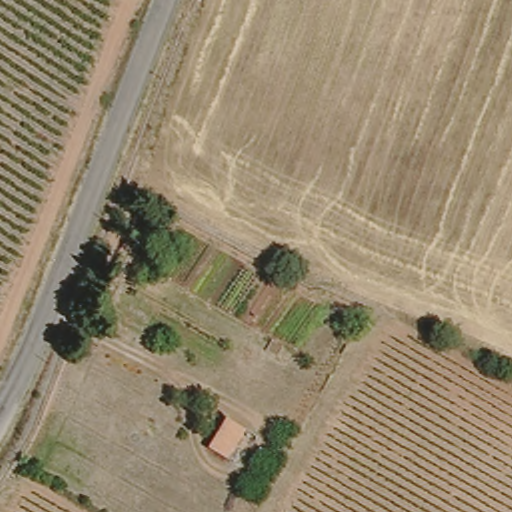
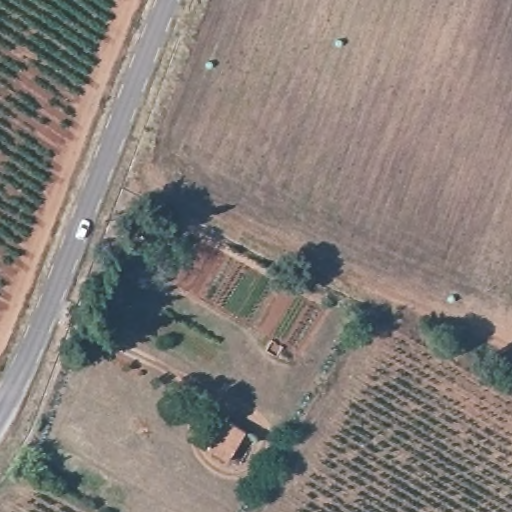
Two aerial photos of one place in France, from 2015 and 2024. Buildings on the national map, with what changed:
unchanged [(253,434),(238,466),(203,450),(220,418),(253,434)]

